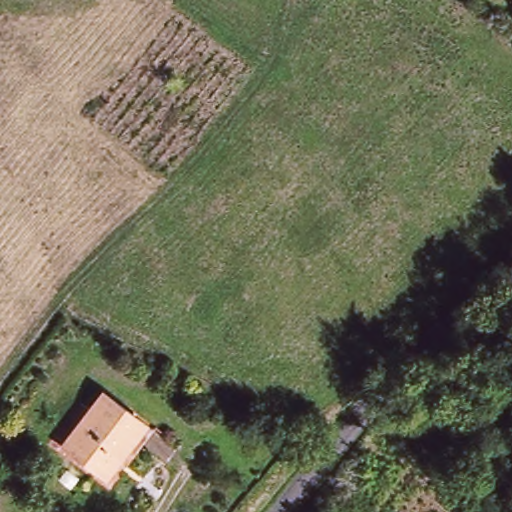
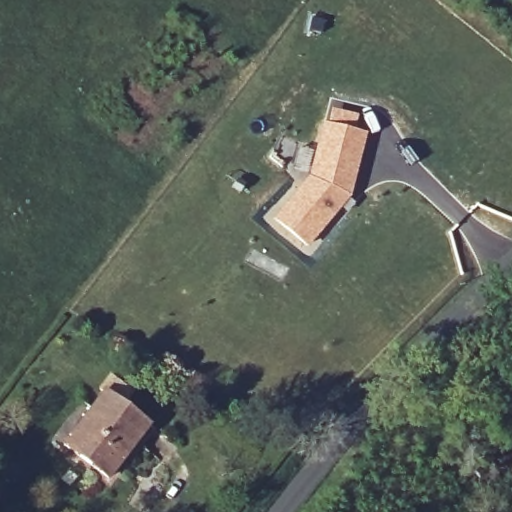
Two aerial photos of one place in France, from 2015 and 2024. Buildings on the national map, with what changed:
new [(365,134),(350,198),(308,247),(272,218),(311,176),(324,123),(365,134)]
unchanged [(123,464),(112,481),(65,446),(87,416),(101,396),(145,425),(149,428),(123,464)]

